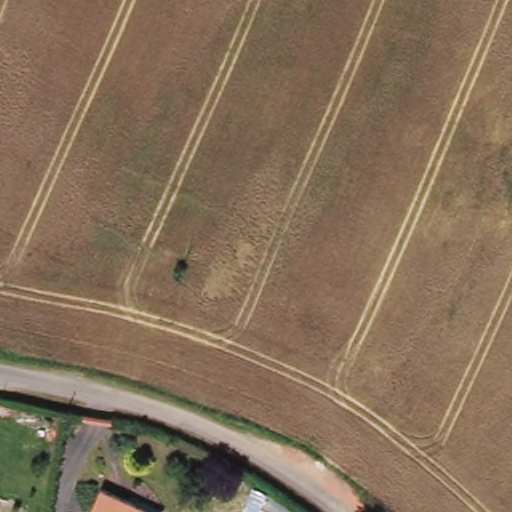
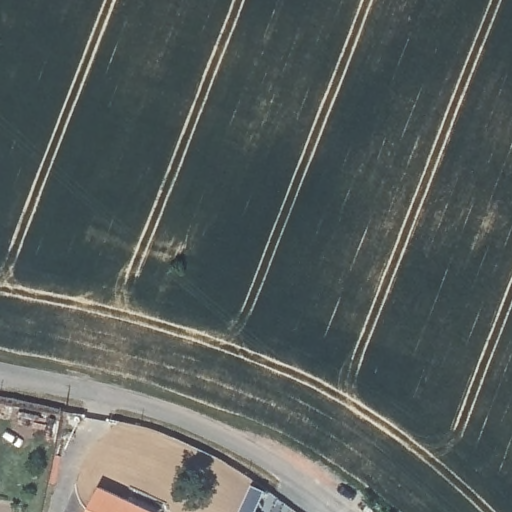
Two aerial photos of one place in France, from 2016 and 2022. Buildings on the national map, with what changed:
unchanged [(260,512),(240,512),(252,484),(268,491),(260,512)]
unchanged [(91,512),(101,491),(147,512),(91,512)]

